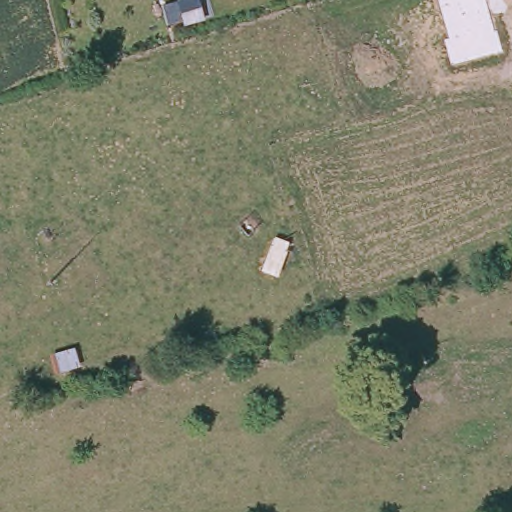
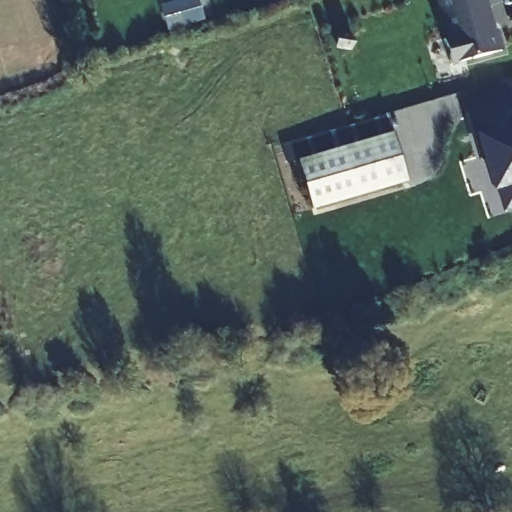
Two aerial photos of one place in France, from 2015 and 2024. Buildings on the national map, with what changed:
unchanged [(495,30),(497,30),(503,50),(452,65),(445,40),(450,38),(438,0),(486,0),(495,30)]
new [(512,103),(512,207),(505,210),(498,186),(495,187),(485,155),(480,157),(469,115),(512,103)]
new [(394,133),(408,181),(312,209),(298,161),(394,133)]

